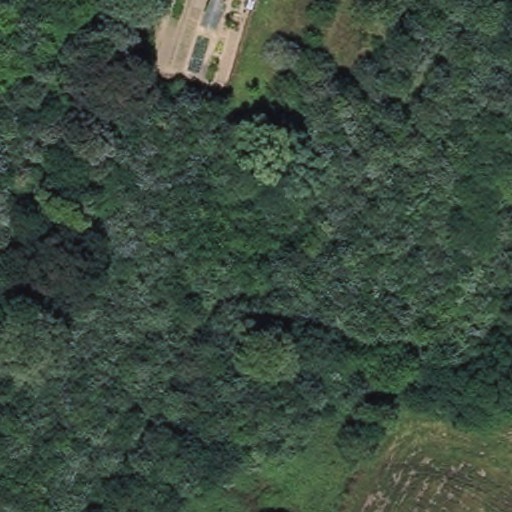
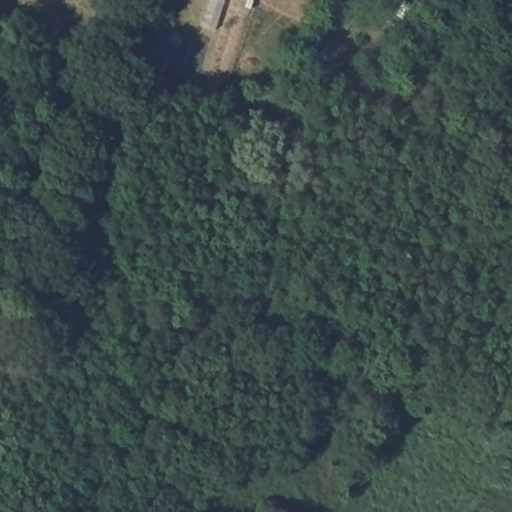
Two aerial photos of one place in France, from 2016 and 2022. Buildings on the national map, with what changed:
unchanged [(245,0),(252,0),(251,2),(245,0)]

